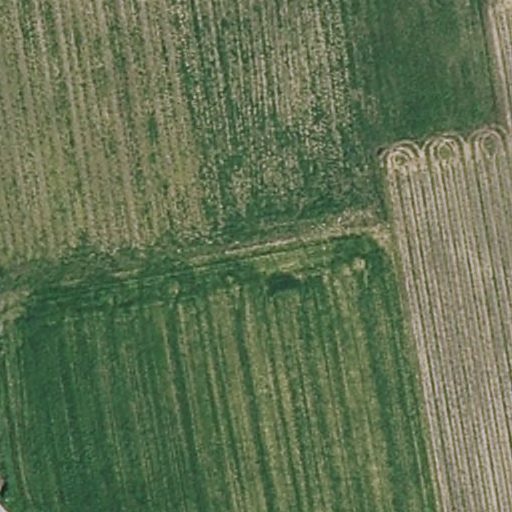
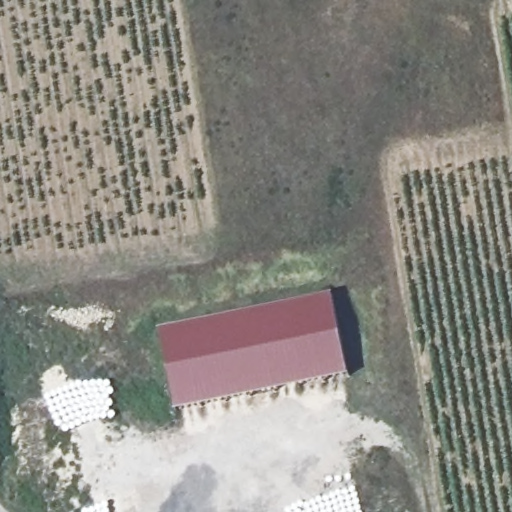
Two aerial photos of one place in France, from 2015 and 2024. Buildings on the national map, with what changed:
new [(335,298),(354,380),(182,419),(164,337),(335,298)]

